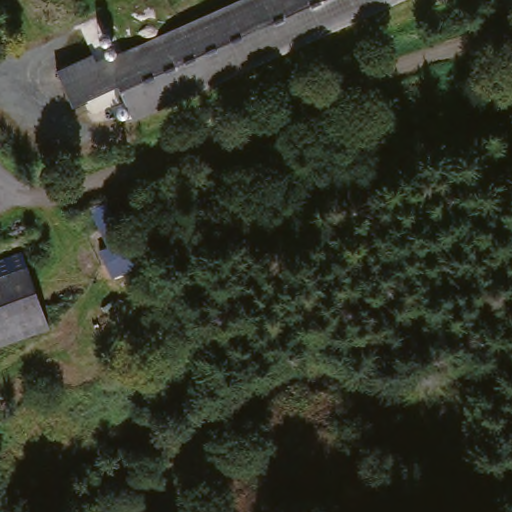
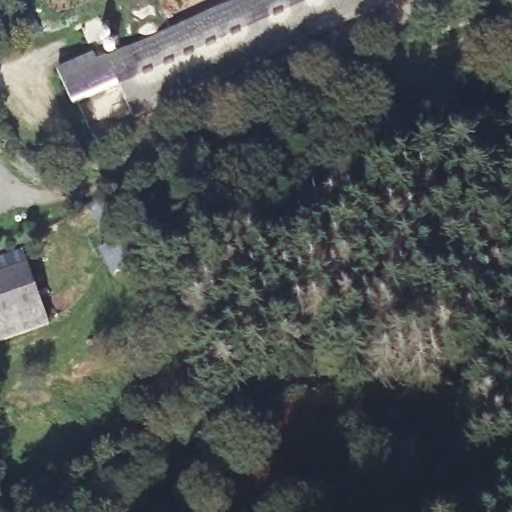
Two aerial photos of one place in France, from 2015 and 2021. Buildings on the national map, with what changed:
unchanged [(238,0),(402,0),(199,92),(185,24),(238,0)]
unchanged [(132,120),(120,90),(73,110),(61,80),(185,24),(199,92),(132,120)]
unchanged [(111,274),(92,234),(99,230),(90,205),(109,199),(135,264),(111,274)]
unchanged [(0,261),(23,253),(47,328),(0,344),(0,261)]

